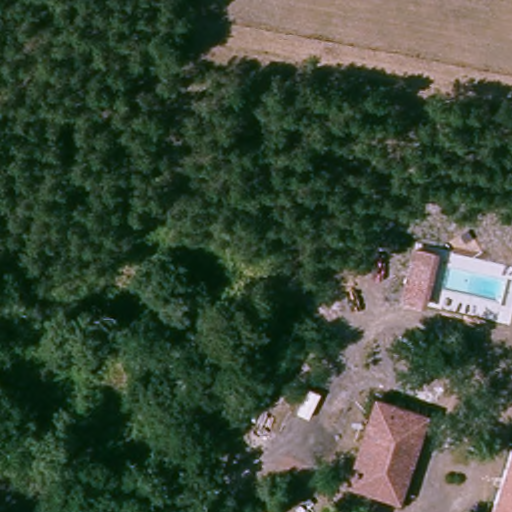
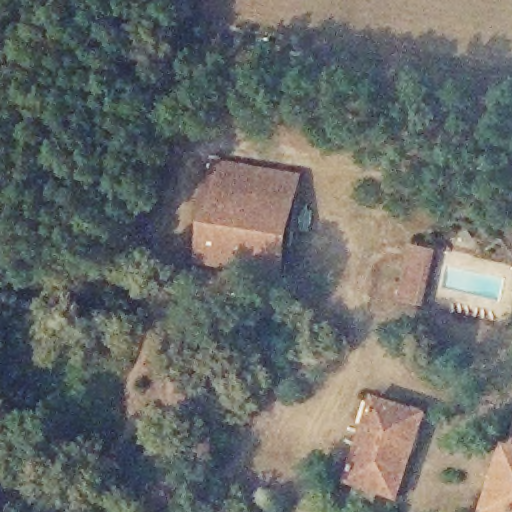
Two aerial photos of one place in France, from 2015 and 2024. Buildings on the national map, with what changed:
new [(302,174),(287,278),(197,265),(215,159),(302,174)]
new [(439,251),(426,308),(400,303),(411,245),(439,251)]
unchanged [(382,403),(425,420),(396,496),(353,480),(382,403)]
unchanged [(512,463),(512,512),(498,512),(512,463)]

